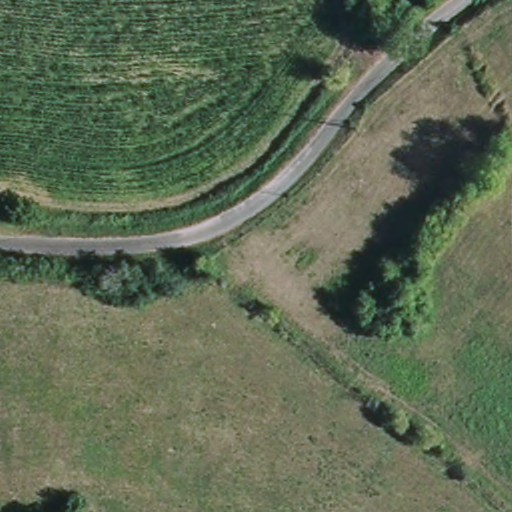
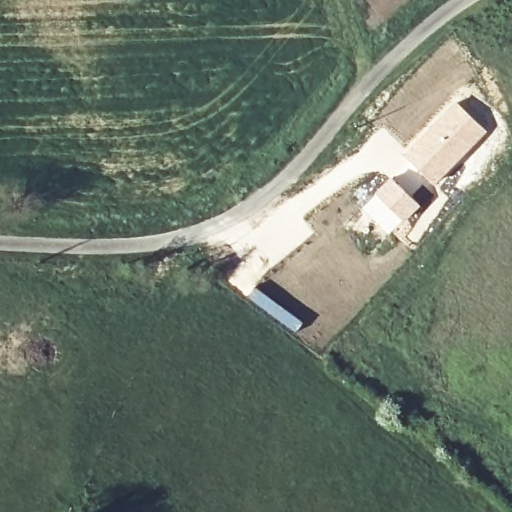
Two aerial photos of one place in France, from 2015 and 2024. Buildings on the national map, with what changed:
new [(454,100),(487,131),(434,185),(427,179),(418,170),(402,154),(454,100)]
new [(377,188),(393,176),(409,166),(416,171),(418,170),(427,179),(412,196),(420,204),(386,236),(359,209),(377,188)]

